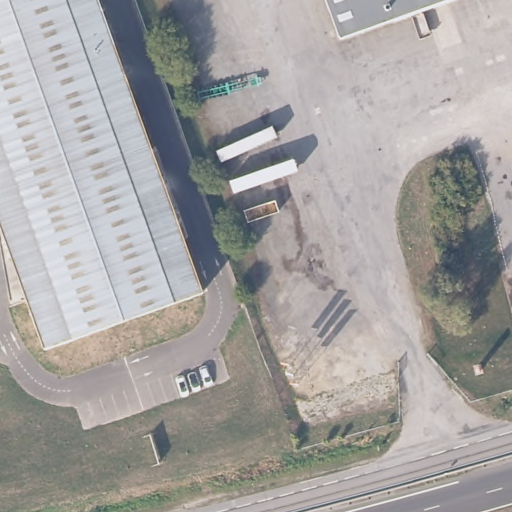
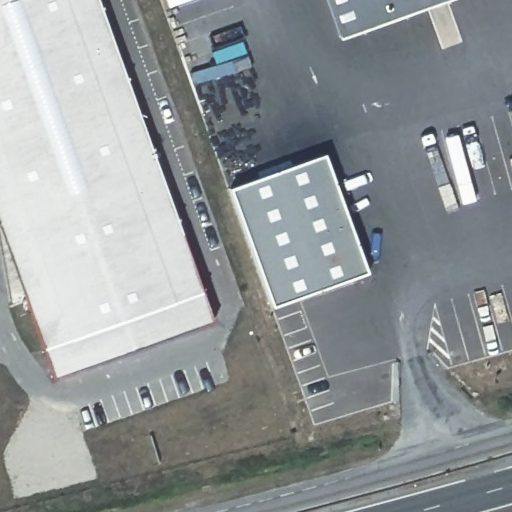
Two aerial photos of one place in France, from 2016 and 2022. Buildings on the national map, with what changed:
unchanged [(199,288),(39,344),(0,228),(0,0),(100,0),(199,288)]
unchanged [(332,46),(316,0),(453,0),(332,46)]
new [(325,150),(370,273),(272,308),(229,189),(325,150)]

